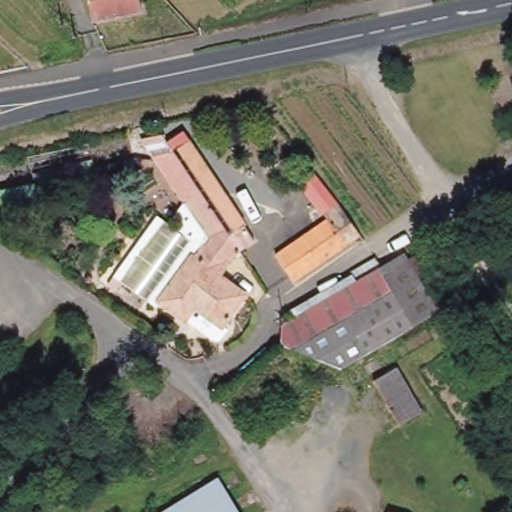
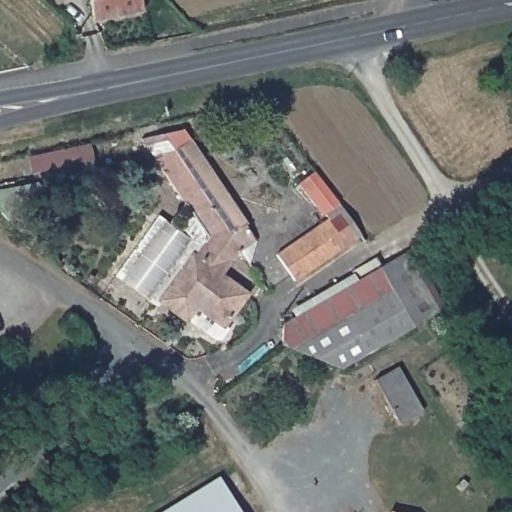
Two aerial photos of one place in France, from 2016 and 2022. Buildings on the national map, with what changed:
unchanged [(140,15),(90,27),(85,0),(136,0),(140,15)]
unchanged [(253,290),(231,326),(203,311),(195,323),(166,308),(204,235),(155,159),(165,150),(180,140),(235,220),(240,227),(250,240),(235,250),(221,272),(253,290)]
unchanged [(291,283),(273,257),(324,220),(319,215),(331,206),(356,236),(291,283)]
unchanged [(280,335),(301,315),(365,275),(388,260),(393,267),(401,261),(440,311),(429,317),(400,336),(332,378),(297,360),(294,358),(280,335)]
unchanged [(368,380),(390,364),(421,410),(397,426),(368,380)]
unchanged [(233,512),(163,512),(214,481),(233,512)]

